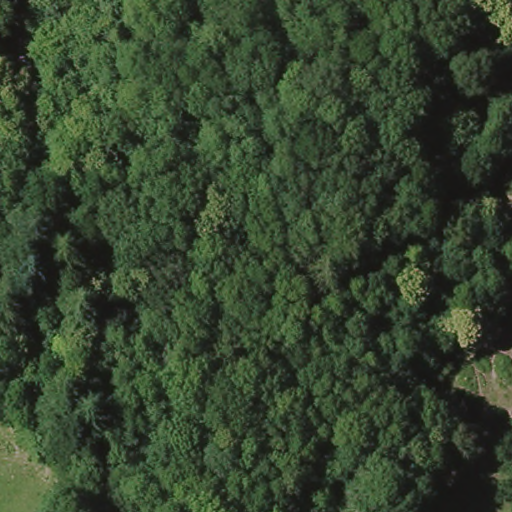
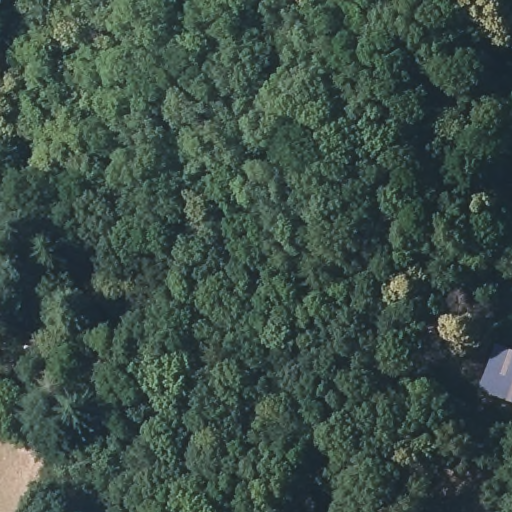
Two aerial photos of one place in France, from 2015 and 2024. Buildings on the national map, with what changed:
unchanged [(34,326),(32,343),(18,341),(16,326),(34,326)]
new [(512,354),(512,407),(481,395),(498,349),(512,354)]

